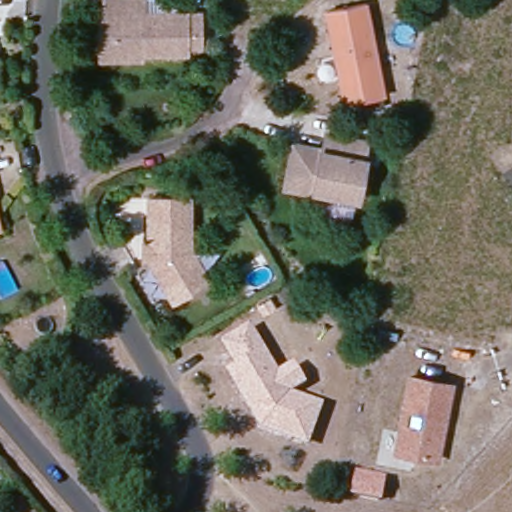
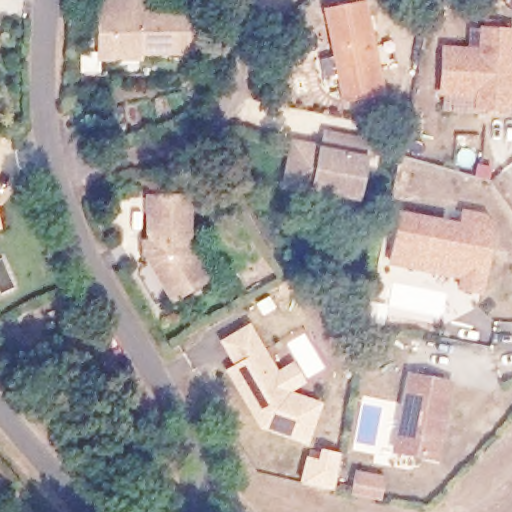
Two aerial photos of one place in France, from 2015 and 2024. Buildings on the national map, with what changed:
unchanged [(366,0),(367,0),(384,95),(341,103),(323,9),(366,0)]
unchanged [(186,52),(186,59),(98,59),(98,20),(106,20),(106,4),(154,4),(164,4),(164,20),(199,20),(199,39),(199,52),(186,52)]
new [(477,97),(439,96),(443,48),(479,50),(480,29),(512,30),(512,111),(477,109),(477,97)]
unchanged [(370,142),(359,198),(292,185),(299,146),(327,152),(330,135),(370,142)]
unchanged [(183,205),(183,256),(201,287),(166,307),(142,267),(143,204),(183,205)]
new [(459,224),(462,210),(488,214),(495,228),(484,297),(455,292),(458,279),(388,265),(399,211),(459,224)]
unchanged [(235,366),(220,341),(252,325),(279,370),(293,362),(306,386),(292,393),(323,405),(308,448),(260,432),(225,371),(235,366)]
unchanged [(395,449),(410,374),(451,383),(436,457),(395,449)]
unchanged [(387,477),(382,502),(351,497),(354,471),(387,477)]

